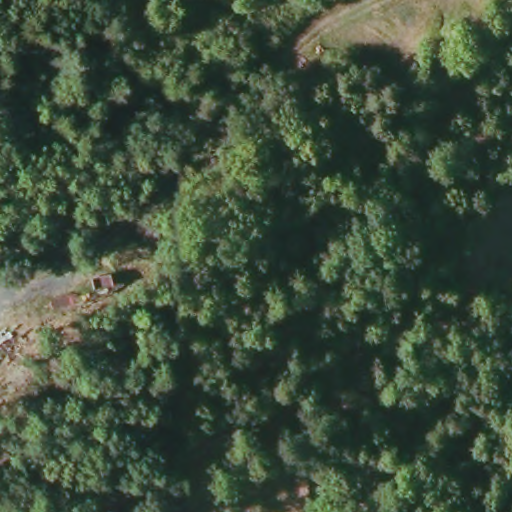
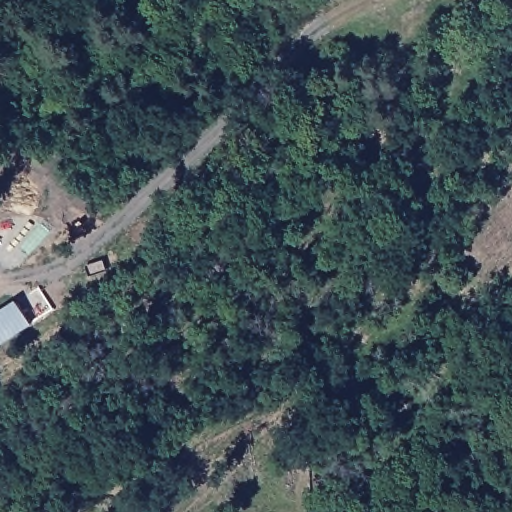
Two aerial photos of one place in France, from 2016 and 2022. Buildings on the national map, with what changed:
new [(33,325),(0,346),(0,313),(20,300),(33,325)]

